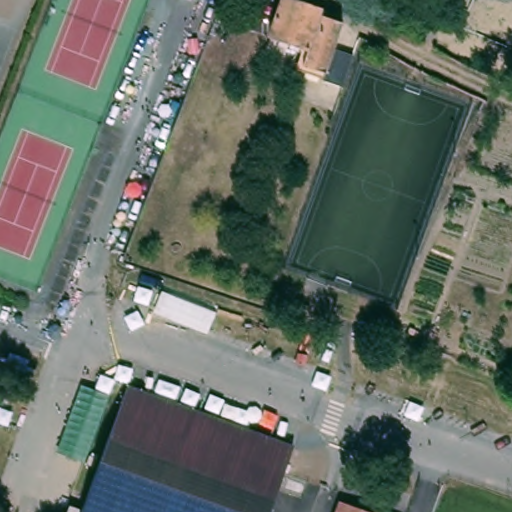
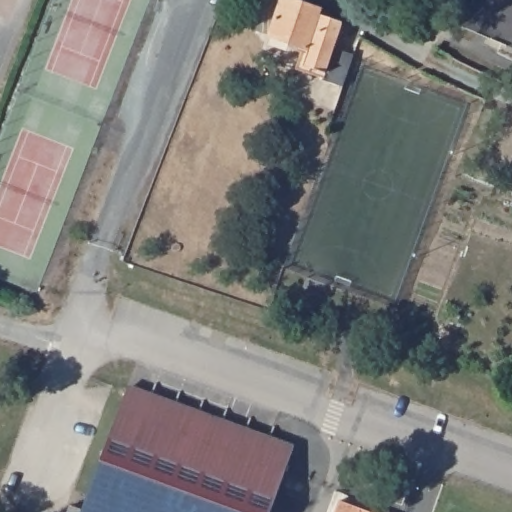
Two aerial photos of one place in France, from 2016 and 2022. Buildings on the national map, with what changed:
unchanged [(268,30),(279,0),(307,0),(322,5),(320,10),(307,45),(268,30)]
unchanged [(320,10),(341,16),(331,41),(352,49),(340,81),(321,74),(322,67),(302,61),(307,45),(320,10)]
unchanged [(295,445),(272,512),(81,512),(122,388),(295,445)]
unchanged [(376,510),(382,512),(328,512),(333,496),(376,510)]

